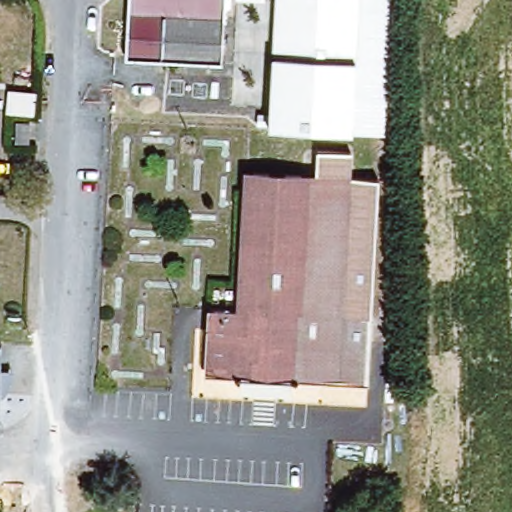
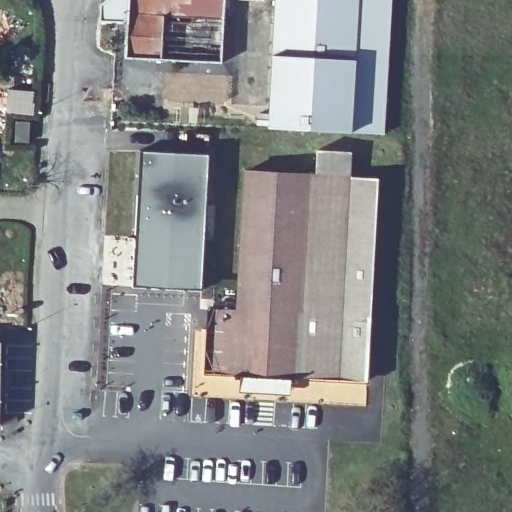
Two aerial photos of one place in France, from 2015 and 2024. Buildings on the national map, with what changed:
unchanged [(127,59),(130,0),(227,0),(223,64),(127,59)]
unchanged [(359,0),(355,60),(351,131),(267,126),(270,57),(274,0),(359,0)]
unchanged [(351,131),(355,60),(359,0),(391,0),(385,134),(351,131)]
unchanged [(29,138),(18,138),(19,126),(29,126),(29,138)]
unchanged [(365,323),(341,320),(351,181),(313,176),(314,147),(352,149),(351,173),(380,177),(368,382),(360,381),(365,323)]
new [(138,149),(208,153),(202,290),(132,287),(138,149)]
unchanged [(341,320),(365,323),(360,381),(202,363),(209,307),(227,308),(247,169),(351,181),(341,320)]

